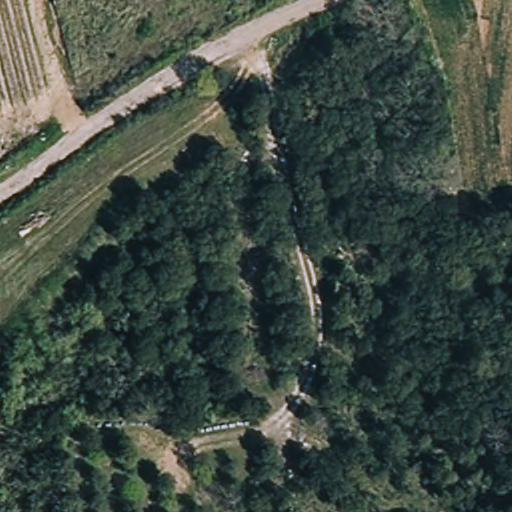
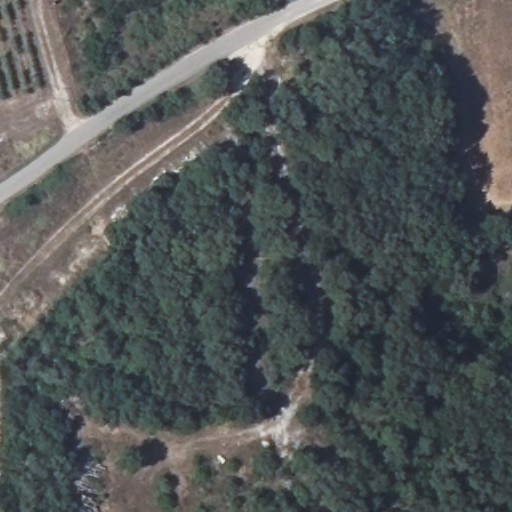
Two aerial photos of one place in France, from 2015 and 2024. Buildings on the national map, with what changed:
unchanged [(61,133),(57,129),(56,123),(56,121),(58,116),(62,113),(67,111),(70,111),(75,115),(77,121),(78,127),(75,134),(72,135),(66,135),(61,133)]

